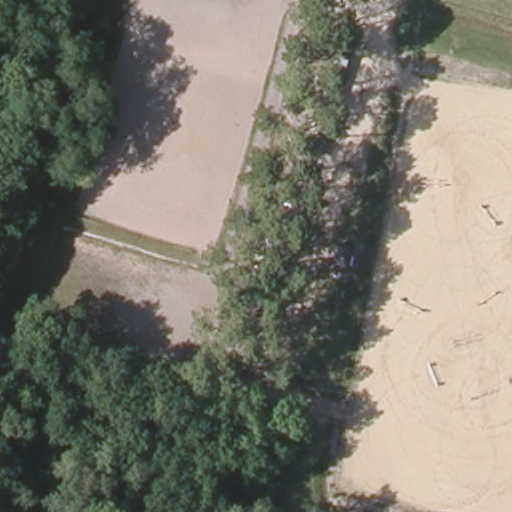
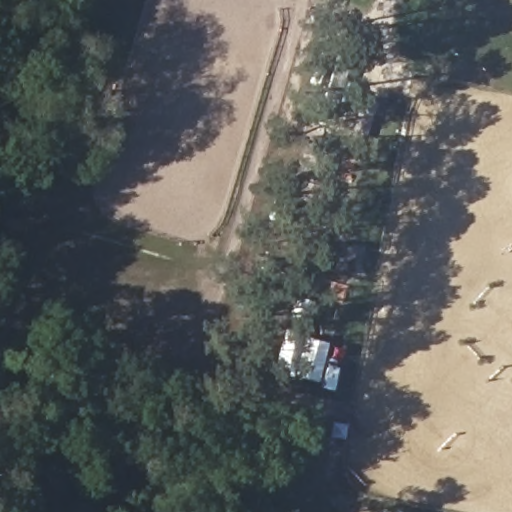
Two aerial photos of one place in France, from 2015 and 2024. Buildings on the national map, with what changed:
unchanged [(307,134),(323,137),(320,153),(303,150),(307,134)]
unchanged [(337,242),(350,245),(345,271),(333,270),(337,242)]

